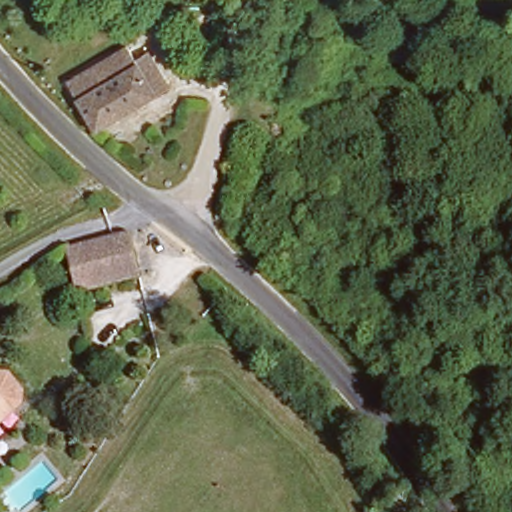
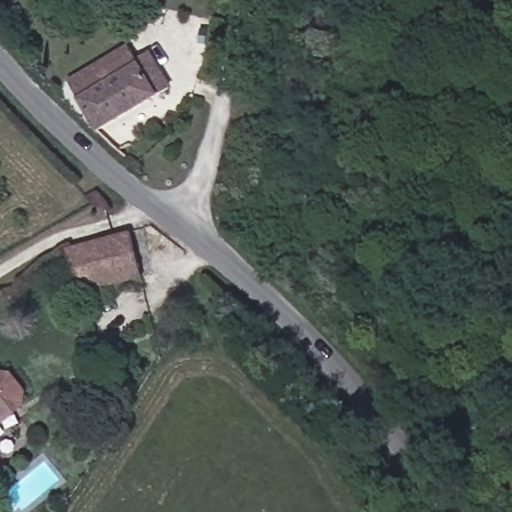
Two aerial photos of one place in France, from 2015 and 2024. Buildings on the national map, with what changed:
unchanged [(75,93),(132,57),(140,68),(154,60),(172,89),(102,133),(75,93)]
unchanged [(141,277),(78,299),(62,248),(127,226),(141,277)]
unchanged [(3,369),(20,368),(32,384),(29,403),(0,426),(0,371),(3,369)]

